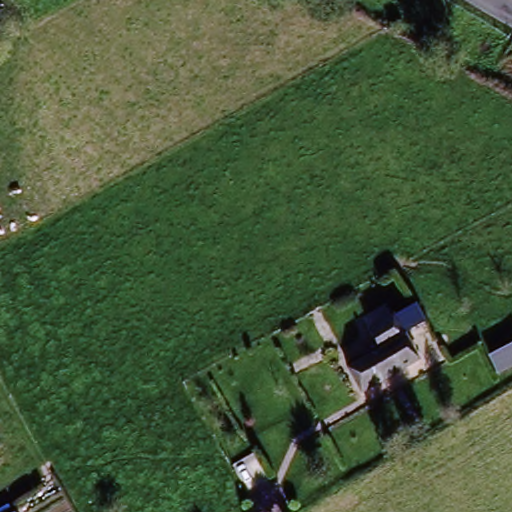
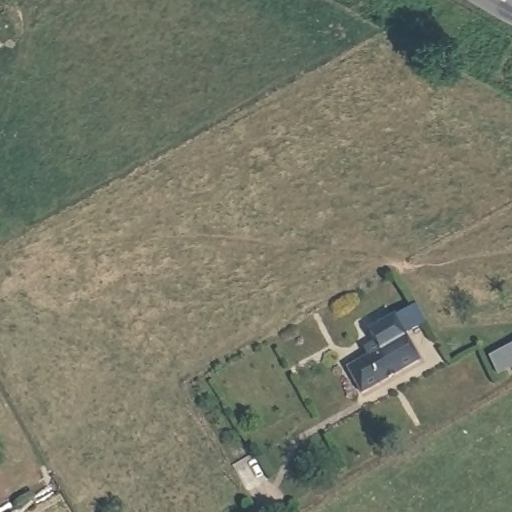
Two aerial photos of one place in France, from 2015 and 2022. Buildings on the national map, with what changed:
unchanged [(348,370),(373,355),(361,328),(410,302),(427,325),(405,338),(419,363),(365,394),(348,370)]

